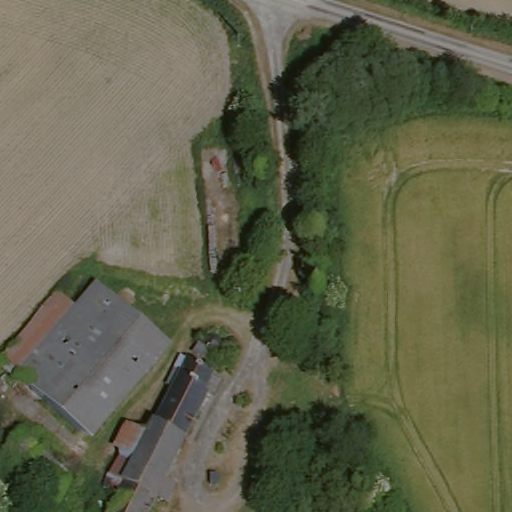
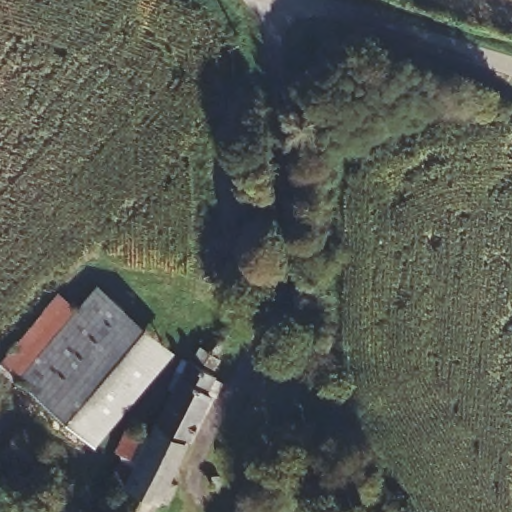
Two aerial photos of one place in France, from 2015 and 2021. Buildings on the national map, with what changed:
unchanged [(7,363),(66,296),(86,313),(107,288),(132,309),(52,402),(7,363)]
unchanged [(52,402),(132,309),(173,343),(92,437),(52,402)]
unchanged [(212,354),(204,348),(211,338),(219,344),(212,354)]
unchanged [(118,482),(150,422),(154,424),(187,364),(208,378),(201,392),(206,395),(169,467),(146,512),(108,512),(122,484),(118,482)]
unchanged [(71,472),(52,493),(4,445),(22,425),(71,472)]

